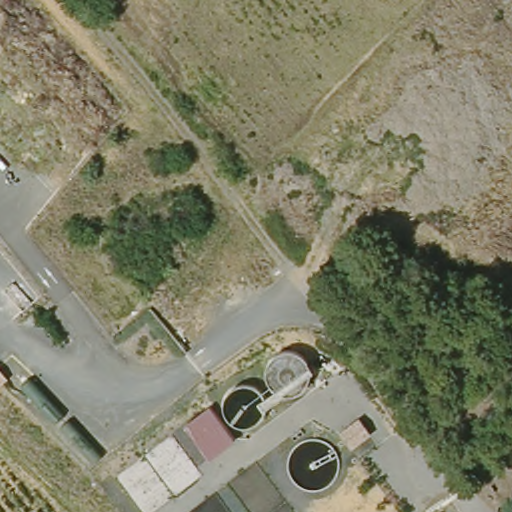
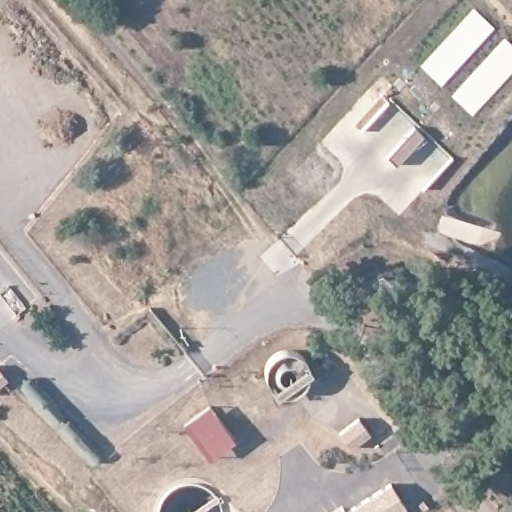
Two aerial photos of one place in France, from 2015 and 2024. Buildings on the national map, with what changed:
unchanged [(0,360),(15,377),(0,387),(0,360)]
unchanged [(187,421),(212,403),(232,437),(210,456),(187,421)]
unchanged [(341,428),(362,414),(373,430),(353,445),(341,428)]
new [(388,481),(405,505),(394,512),(345,512),(388,481)]
new [(342,508),(345,512),(338,512),(342,508)]

